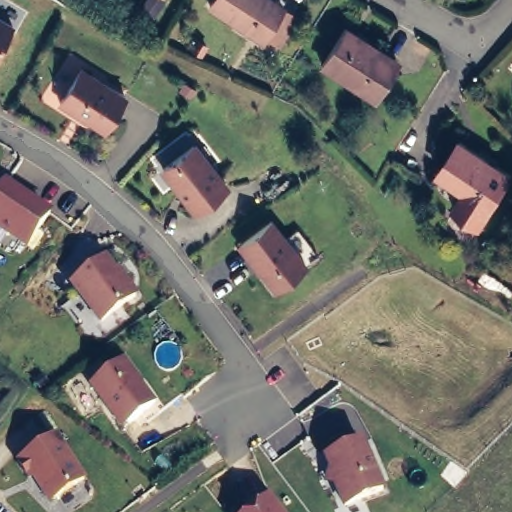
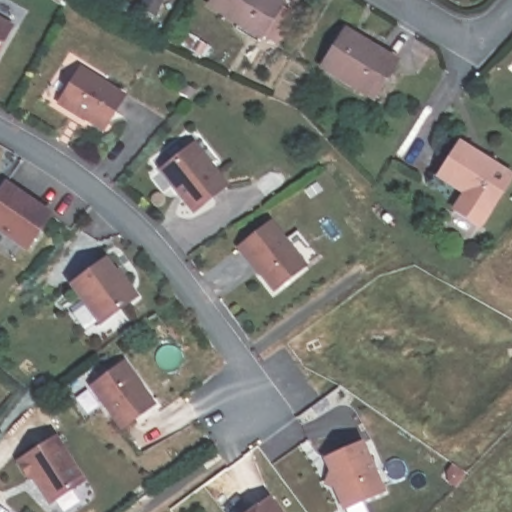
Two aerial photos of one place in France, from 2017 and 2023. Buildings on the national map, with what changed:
unchanged [(280,37),(266,29),(264,33),(210,1),(211,0),(283,0),(282,2),(295,10),(280,37)]
unchanged [(0,56),(0,16),(19,25),(0,56)]
unchanged [(403,63),(382,98),(330,66),(350,31),(403,63)]
unchanged [(128,93),(102,133),(55,102),(78,61),(128,93)]
unchanged [(232,186),(192,213),(158,167),(197,137),(232,186)]
unchanged [(512,187),(487,230),(459,213),(469,195),(445,181),(467,144),(512,172),(512,187)]
unchanged [(54,212),(24,252),(0,233),(0,187),(7,177),(54,212)]
unchanged [(308,266),(274,291),(239,245),(275,220),(309,266),(308,266)]
unchanged [(139,296),(96,325),(67,284),(111,253),(139,296)]
unchanged [(123,430),(90,384),(125,359),(157,405),(123,430)]
unchanged [(90,482),(48,507),(17,458),(58,432),(90,482)]
unchanged [(384,489),(344,508),(323,455),(362,437),(384,489)]
unchanged [(285,512),(250,512),(273,495),(285,512)]

